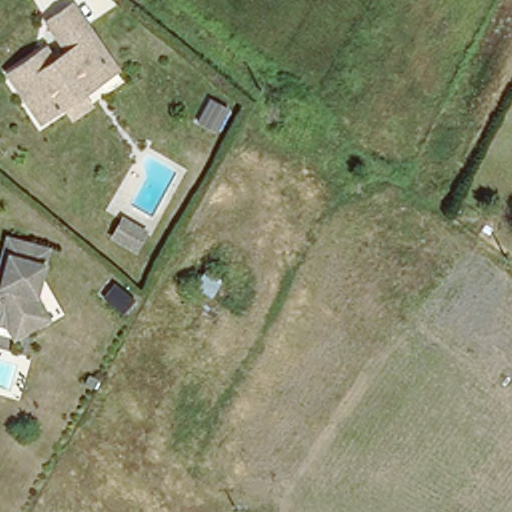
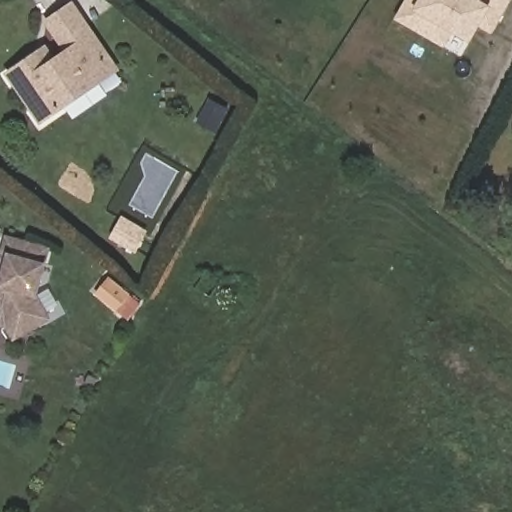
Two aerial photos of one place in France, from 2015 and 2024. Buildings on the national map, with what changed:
new [(491,33),(478,26),(469,42),(453,33),(444,47),(394,19),(405,0),(511,0),(491,33)]
unchanged [(89,74),(32,114),(0,68),(0,67),(23,50),(36,41),(45,54),(58,44),(55,39),(40,19),(65,2),(67,5),(79,22),(98,50),(81,62),(89,74)]
unchanged [(63,111),(57,103),(35,119),(32,114),(89,74),(81,62),(98,50),(115,74),(63,111)]
unchanged [(143,231),(133,248),(112,236),(122,218),(143,231)]
unchanged [(0,332),(0,246),(3,234),(45,245),(40,261),(32,292),(45,315),(26,326),(10,335),(0,332)]
unchanged [(226,304),(211,295),(209,298),(178,277),(189,260),(235,287),(226,304)]

